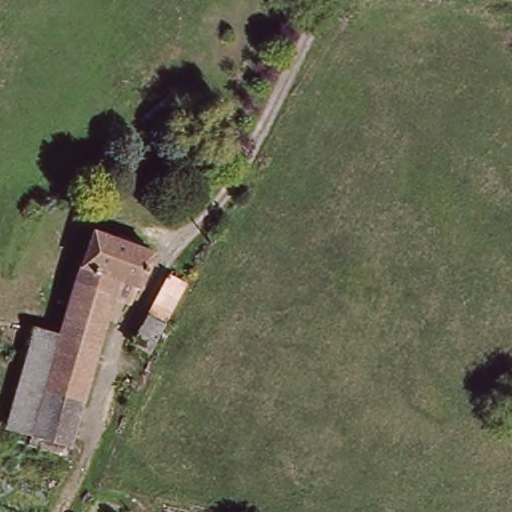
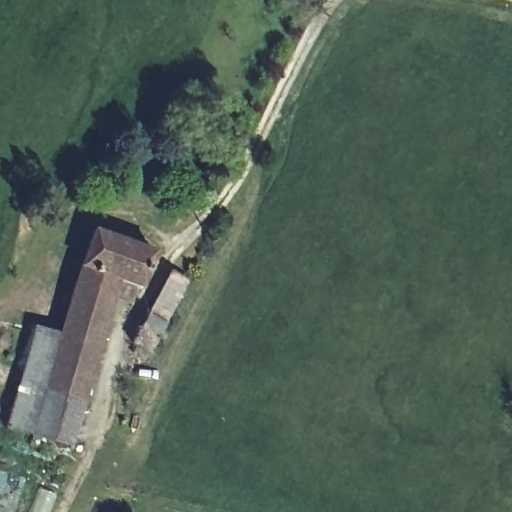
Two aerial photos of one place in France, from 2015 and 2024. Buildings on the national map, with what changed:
unchanged [(35,434),(60,337),(85,229),(145,244),(136,282),(112,276),(79,425),(72,455),(33,447),(35,434)]
unchanged [(145,353),(136,347),(168,274),(185,279),(150,363),(142,359),(145,353)]
unchanged [(10,428),(31,331),(60,337),(35,434),(10,428)]

